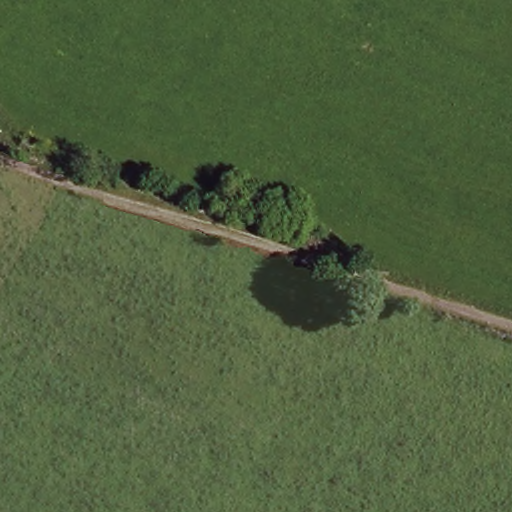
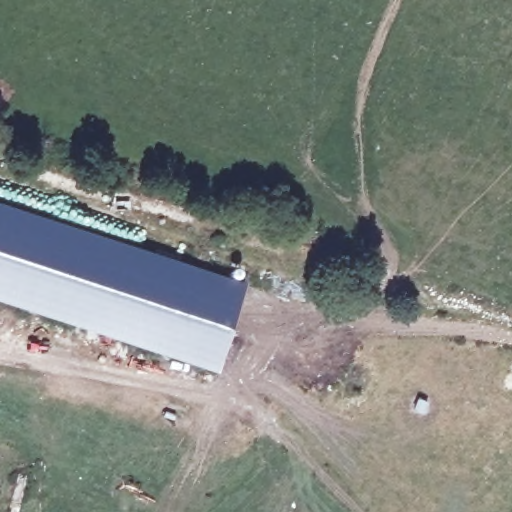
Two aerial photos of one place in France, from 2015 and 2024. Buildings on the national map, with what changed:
new [(0,301),(0,203),(246,283),(217,371),(0,301)]

